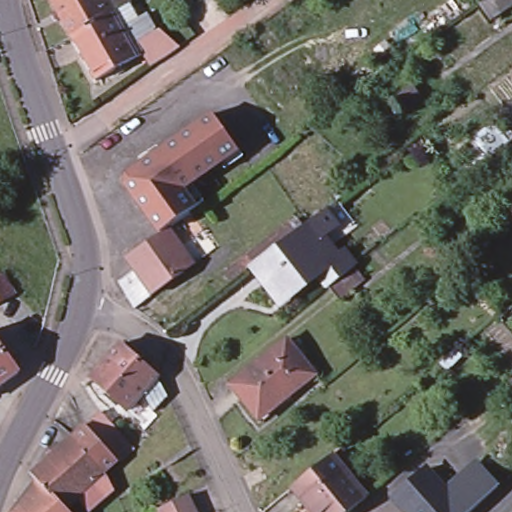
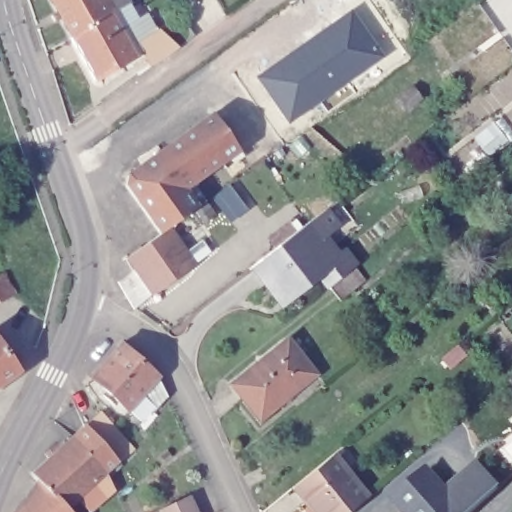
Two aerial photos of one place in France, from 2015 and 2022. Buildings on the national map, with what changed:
unchanged [(56,0),(109,0),(116,12),(75,36),(56,0)]
unchanged [(141,15),(150,11),(158,28),(166,24),(178,43),(149,63),(143,53),(120,11),(116,12),(109,0),(131,0),(141,15)]
unchanged [(491,21),(479,5),(487,0),(512,0),(512,6),(491,21)]
unchanged [(75,36),(116,12),(120,11),(143,53),(99,79),(75,36)]
new [(355,11),(386,54),(292,125),(260,77),(355,11)]
unchanged [(196,206),(168,226),(160,231),(125,183),(127,173),(212,112),(238,148),(236,146),(220,158),(222,160),(191,182),(204,200),(196,206)]
unchanged [(512,206),(512,211),(510,208),(512,206)]
unchanged [(330,284),(319,270),(286,296),(272,277),(277,273),(264,256),(312,220),(338,254),(344,250),(355,264),(367,277),(362,281),(341,298),(330,284)]
unchanged [(117,280),(134,267),(126,255),(133,250),(146,242),(160,231),(168,226),(194,262),(152,292),(135,304),(117,280)]
unchanged [(14,293),(0,300),(0,272),(2,271),(14,293)]
unchanged [(284,396),(283,395),(260,413),(247,395),(243,397),(235,386),(231,381),(287,336),(291,341),(315,371),(284,396)]
unchanged [(119,344),(156,376),(127,408),(90,376),(119,344)]
unchanged [(16,369),(18,372),(0,384),(0,346),(16,369)]
unchanged [(76,498),(65,508),(65,509),(38,479),(31,472),(72,435),(84,425),(85,424),(105,446),(119,460),(106,472),(105,472),(111,487),(86,509),(76,498)]
unchanged [(346,473),(368,499),(352,512),(309,512),(292,491),(330,459),(333,457),(346,473)]
unchanged [(426,467),(445,489),(477,461),(498,485),(468,512),(409,512),(394,495),(426,467)]
unchanged [(65,509),(65,508),(68,512),(13,512),(38,479),(65,509)]
unchanged [(161,512),(160,509),(189,495),(197,512),(161,512)]

